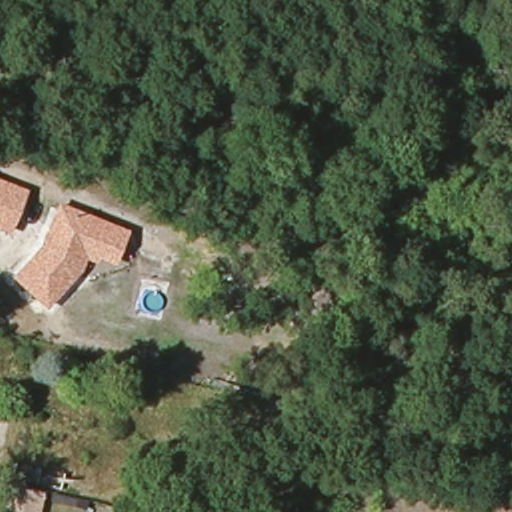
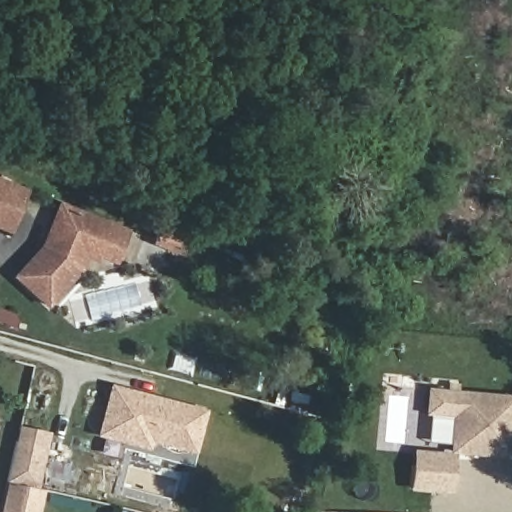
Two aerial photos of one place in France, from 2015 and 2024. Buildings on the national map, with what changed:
unchanged [(10,234),(0,230),(0,179),(29,190),(10,234)]
unchanged [(115,264),(98,259),(97,264),(84,260),(81,273),(47,312),(13,278),(40,245),(58,202),(129,229),(115,264)]
new [(195,455),(151,443),(148,452),(96,438),(110,384),(207,410),(195,455)]
new [(451,454),(456,392),(456,389),(512,395),(512,460),(452,454),(451,454)]
new [(412,489),(414,464),(423,466),(429,391),(456,392),(451,454),(452,454),(449,492),(412,489)]
new [(38,486),(7,479),(19,426),(49,433),(38,486)]
demolished [(14,482),(19,462),(66,474),(63,494),(14,482)]
new [(40,512),(1,512),(7,483),(44,492),(40,512)]
demolished [(31,494),(27,512),(11,509),(16,491),(31,494)]

